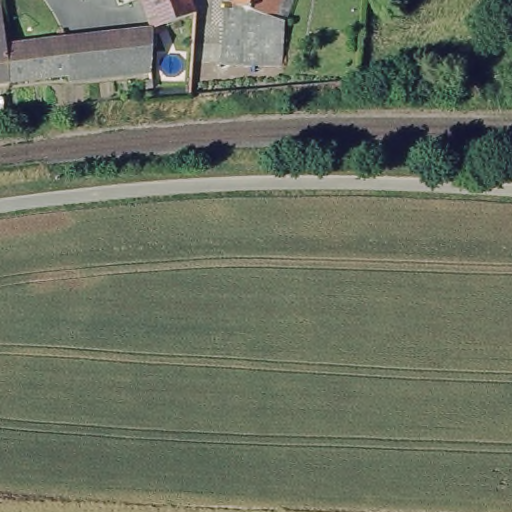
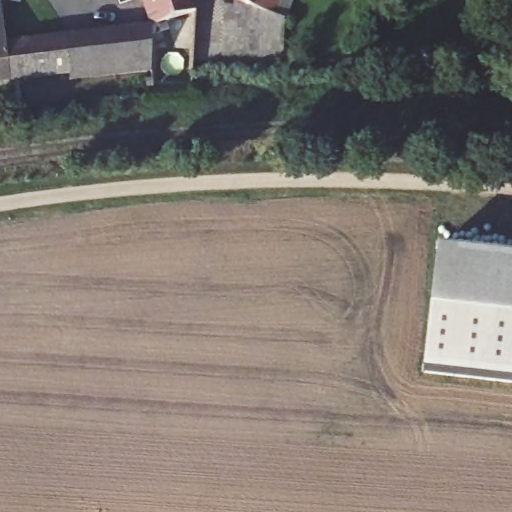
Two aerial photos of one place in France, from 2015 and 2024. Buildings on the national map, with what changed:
unchanged [(199,9),(152,25),(143,0),(196,0),(199,9)]
unchanged [(287,19),(290,58),(222,60),(224,0),(293,0),(287,19)]
unchanged [(5,35),(14,81),(0,83),(0,9),(5,35)]
unchanged [(151,21),(165,56),(155,56),(155,69),(14,81),(5,35),(151,21)]
new [(440,249),(512,258),(512,383),(425,373),(440,249)]

